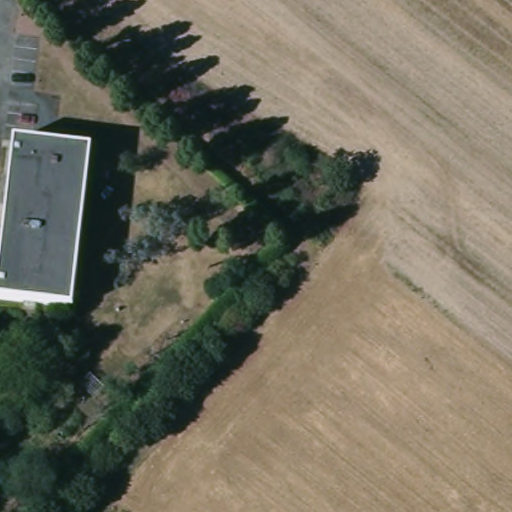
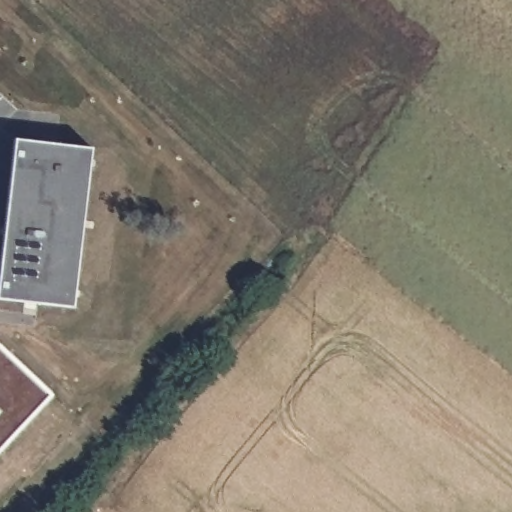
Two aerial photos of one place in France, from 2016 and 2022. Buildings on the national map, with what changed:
unchanged [(0,294),(0,273),(10,189),(11,175),(16,135),(33,137),(91,144),(74,302),(0,294)]
new [(0,452),(0,345),(54,394),(0,452)]

